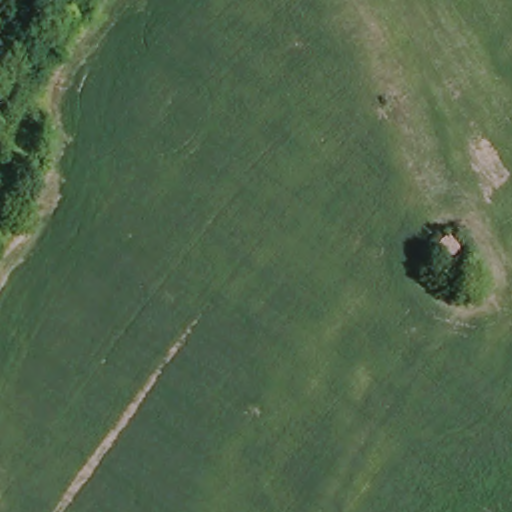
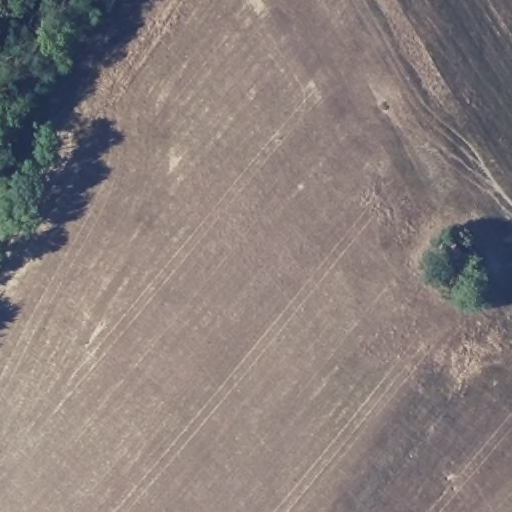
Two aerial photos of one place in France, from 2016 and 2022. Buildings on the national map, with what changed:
unchanged [(472,255),(456,272),(438,255),(455,238),(472,255)]

